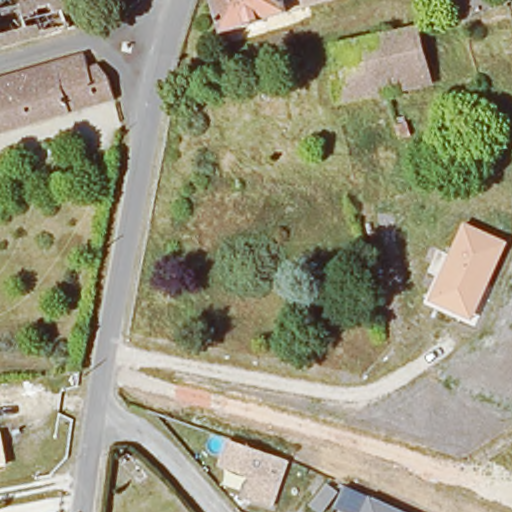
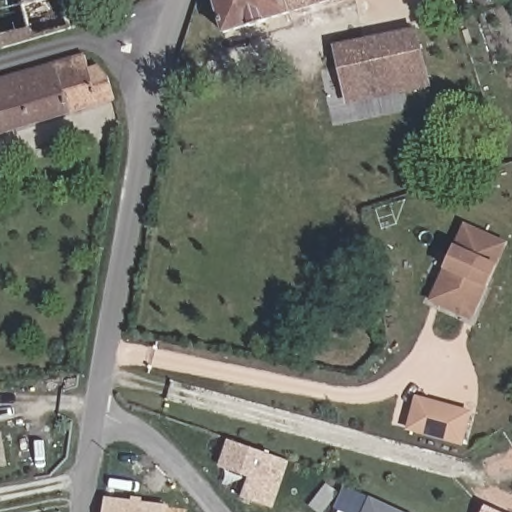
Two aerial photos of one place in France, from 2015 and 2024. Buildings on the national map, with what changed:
unchanged [(33,40),(24,6),(44,0),(61,0),(69,29),(33,40)]
unchanged [(318,3),(290,11),(217,34),(208,0),(328,0),(318,3)]
unchanged [(24,6),(33,40),(0,51),(0,14),(24,6)]
unchanged [(394,37),(420,31),(434,85),(408,91),(394,37)]
unchanged [(333,85),(338,82),(336,72),(343,70),(339,51),(394,37),(408,91),(372,100),(338,107),(333,85)]
unchanged [(0,135),(0,82),(86,54),(92,65),(103,63),(112,82),(118,99),(0,135)]
unchanged [(472,321),(430,302),(467,223),(508,242),(472,321)]
new [(463,445),(406,430),(415,395),(472,410),(463,445)]
unchanged [(2,431),(8,465),(0,467),(0,432),(2,431)]
unchanged [(271,506),(242,497),(249,476),(222,468),(231,441),(287,460),(271,506)]
unchanged [(325,512),(316,512),(310,508),(325,485),(337,493),(325,512)]
new [(169,512),(103,512),(105,496),(169,505),(169,512)]
unchanged [(404,512),(361,512),(367,496),(404,512)]

